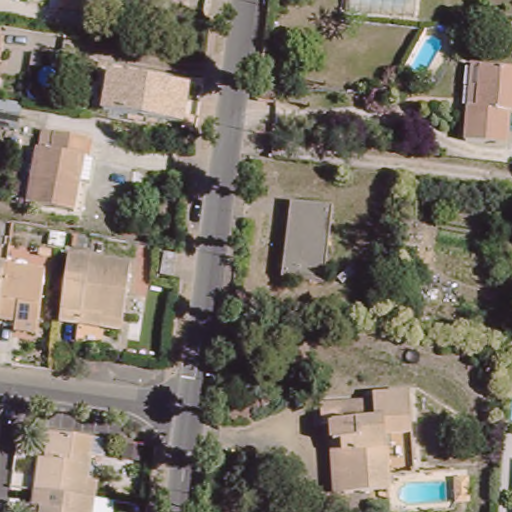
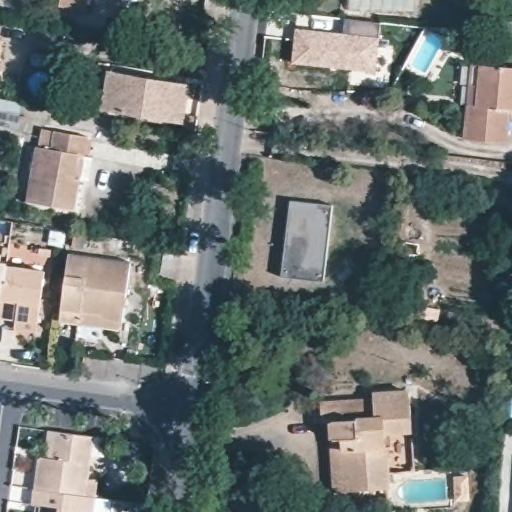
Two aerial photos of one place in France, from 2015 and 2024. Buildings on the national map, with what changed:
unchanged [(60,0),(89,0),(86,13),(59,7),(60,0)]
new [(294,26),(343,31),(345,18),(380,23),(375,74),(290,63),(294,26)]
unchanged [(4,39),(0,60),(0,39),(4,39)]
unchanged [(189,84),(182,123),(103,109),(109,71),(189,84)]
unchanged [(478,115),(487,116),(491,75),(512,77),(512,153),(475,149),(478,115)]
unchanged [(23,102),(18,129),(0,125),(0,98),(23,102)]
unchanged [(88,158),(84,181),(75,179),(70,210),(24,203),(37,129),(83,138),(80,156),(88,158)]
unchanged [(319,282),(277,277),(286,201),(328,206),(319,282)]
unchanged [(413,285),(398,283),(404,242),(420,244),(413,285)]
unchanged [(175,276),(162,274),(166,253),(178,255),(175,276)]
unchanged [(85,324),(65,322),(74,254),(136,263),(128,322),(127,330),(85,324)]
unchanged [(7,264),(7,266),(0,314),(0,263),(7,264)]
unchanged [(14,329),(15,320),(0,318),(0,314),(7,266),(46,272),(39,324),(38,332),(14,329)]
unchanged [(390,488),(337,492),(332,423),(322,423),(321,404),(374,400),(373,394),(410,392),(413,431),(385,433),(390,488)]
unchanged [(97,481),(95,498),(35,489),(40,457),(45,458),(49,431),(54,432),(93,437),(87,479),(97,481)]
unchanged [(467,476),(469,499),(457,501),(455,477),(467,476)]
unchanged [(110,503),(108,512),(40,512),(41,507),(33,506),(35,489),(95,498),(95,501),(110,503)]

